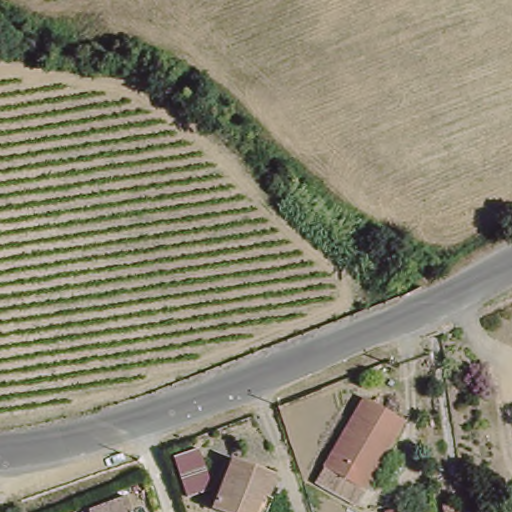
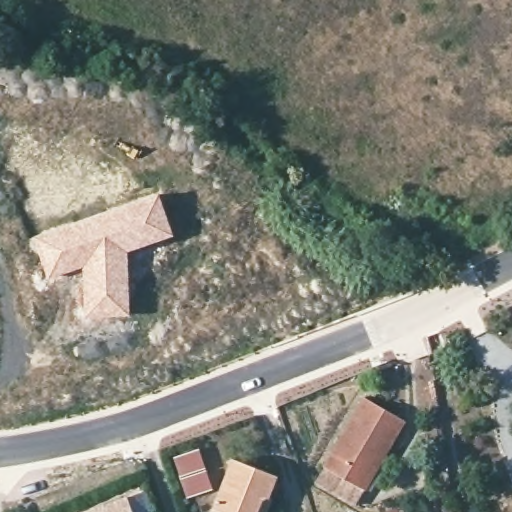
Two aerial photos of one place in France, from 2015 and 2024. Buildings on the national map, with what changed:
new [(158,192),(173,235),(126,250),(129,315),(83,320),(79,268),(46,279),(31,236),(158,192)]
unchanged [(324,472),(363,403),(402,424),(363,493),(324,472)]
new [(196,444),(211,485),(186,493),(171,453),(196,444)]
unchanged [(210,512),(208,511),(226,459),(274,476),(266,496),(273,499),(268,512),(210,512)]
unchanged [(128,496),(133,512),(89,512),(88,510),(128,496)]

